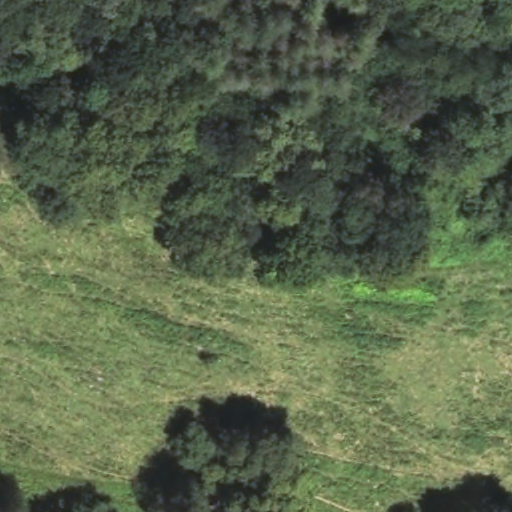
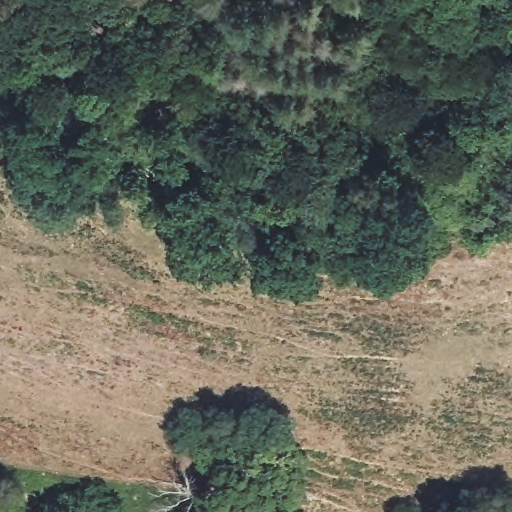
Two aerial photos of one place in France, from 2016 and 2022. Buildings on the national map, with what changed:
unchanged [(461,189),(495,220),(483,234),(448,204),(461,189)]

